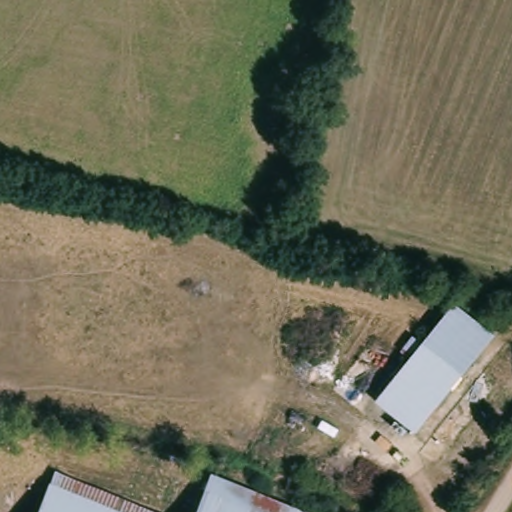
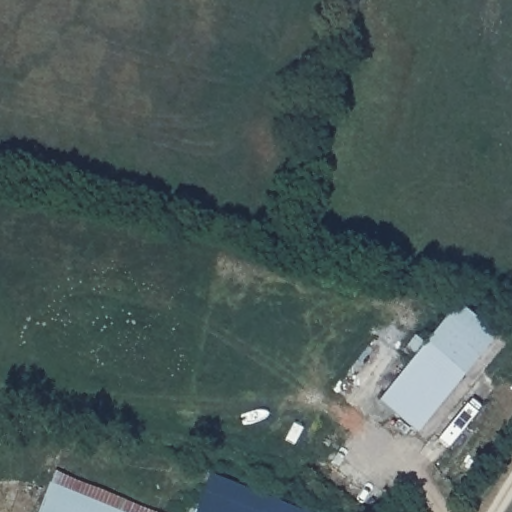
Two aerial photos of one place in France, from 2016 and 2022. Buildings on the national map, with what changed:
unchanged [(375,403),(455,305),(495,338),(415,434),(375,403)]
unchanged [(301,512),(193,512),(212,473),(301,512)]
unchanged [(138,512),(41,512),(57,475),(138,512)]

